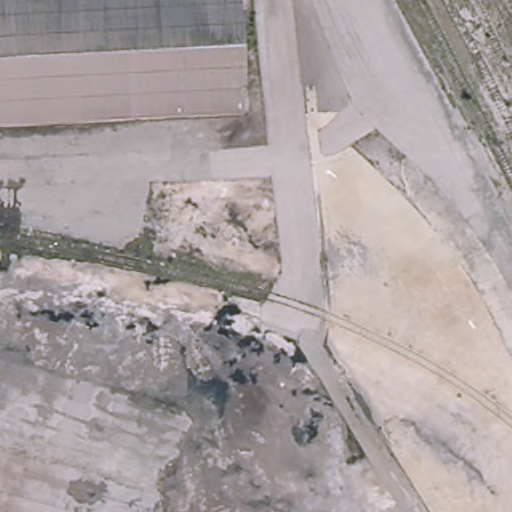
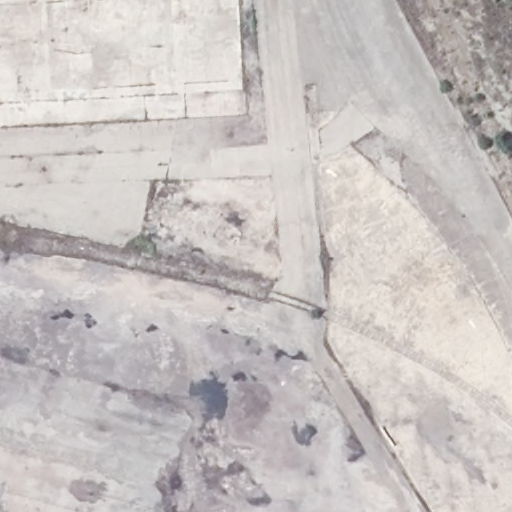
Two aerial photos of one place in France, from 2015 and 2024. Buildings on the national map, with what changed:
demolished [(240,84),(0,96),(0,0),(237,0),(240,84)]

